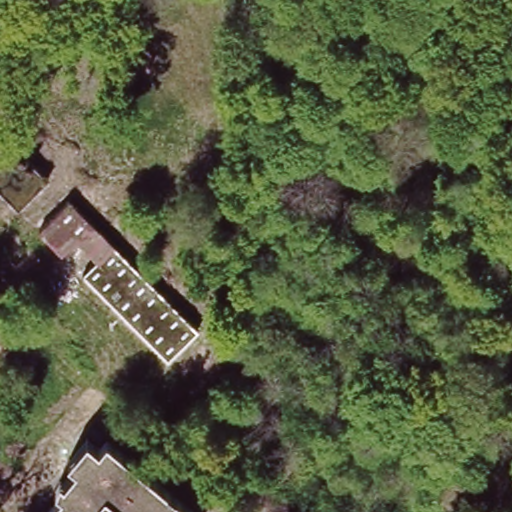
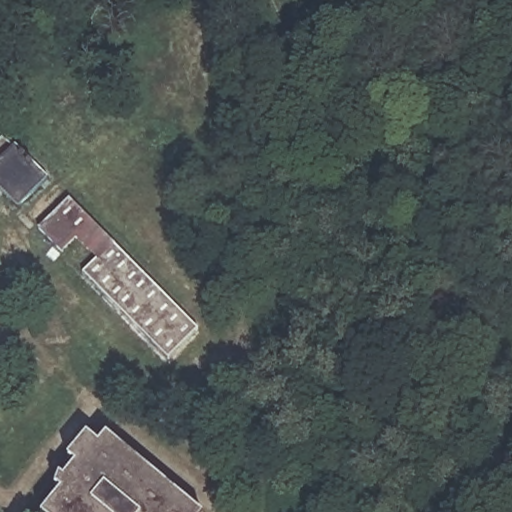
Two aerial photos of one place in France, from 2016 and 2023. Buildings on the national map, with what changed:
unchanged [(23,206),(0,186),(0,145),(6,138),(49,176),(23,206)]
unchanged [(68,199),(200,318),(176,347),(86,266),(94,257),(70,234),(61,245),(43,229),(68,199)]
unchanged [(82,465),(71,453),(88,434),(97,443),(103,437),(191,512),(45,512),(82,465)]

